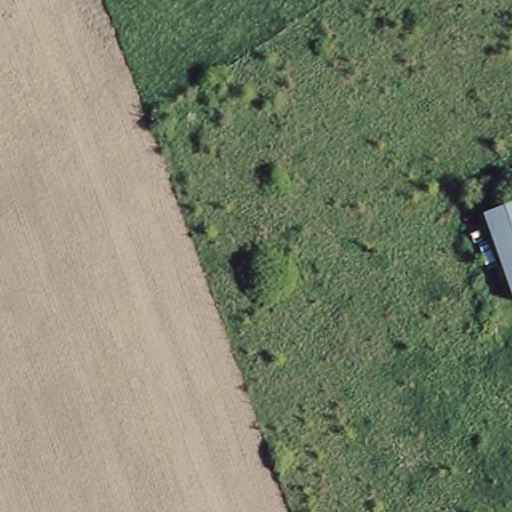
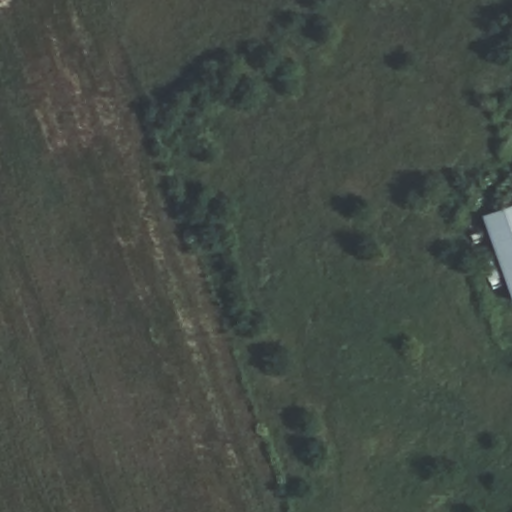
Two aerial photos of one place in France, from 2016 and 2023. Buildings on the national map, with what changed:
unchanged [(512,298),(511,298),(481,212),(512,201),(512,298)]

